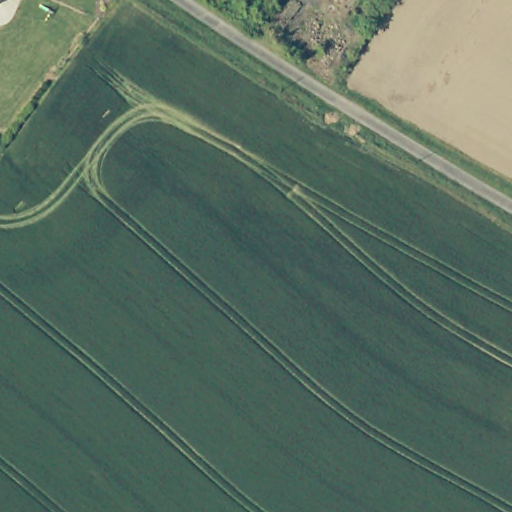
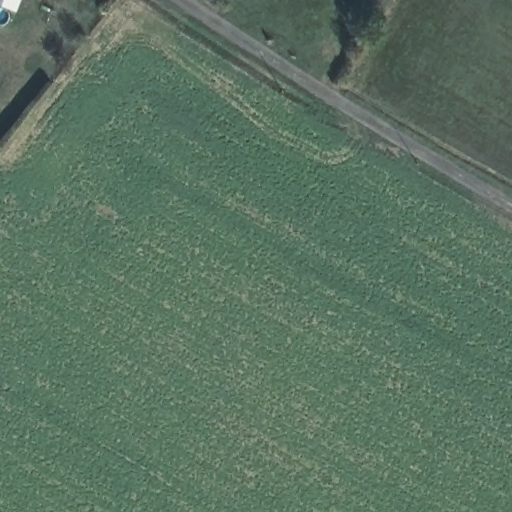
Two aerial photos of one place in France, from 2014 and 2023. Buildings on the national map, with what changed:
unchanged [(3,11),(0,12),(0,0),(7,0),(7,1),(3,11)]

